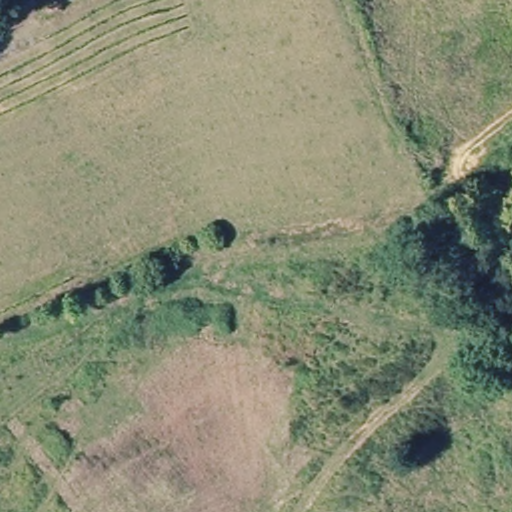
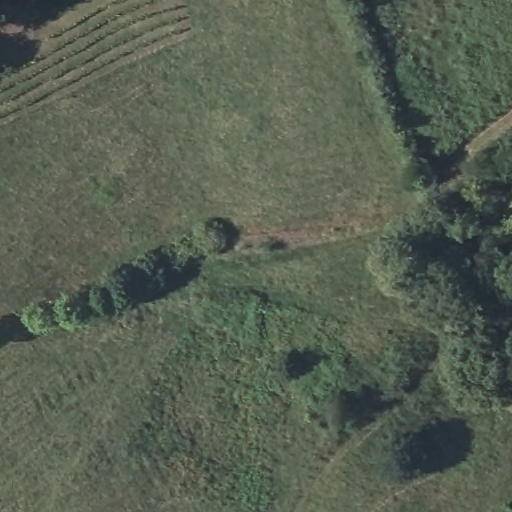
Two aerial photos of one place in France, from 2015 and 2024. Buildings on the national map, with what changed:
[]

